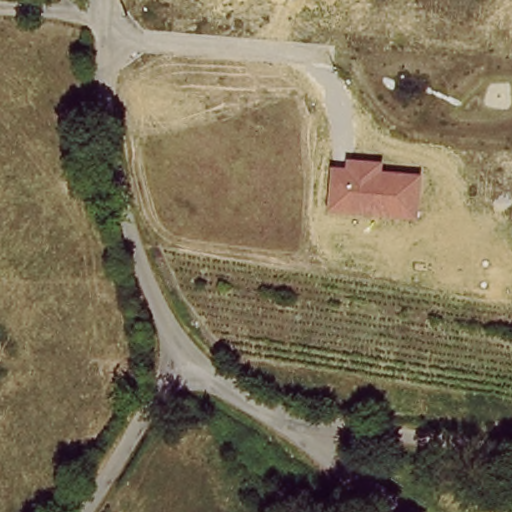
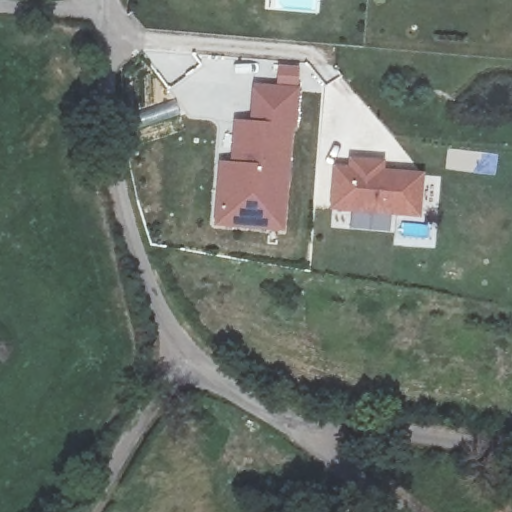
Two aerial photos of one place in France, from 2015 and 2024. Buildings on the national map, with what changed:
new [(231,162),(236,120),(251,121),(253,84),(301,89),(298,129),(294,129),(286,232),(215,225),(221,162),(231,162)]
unchanged [(350,167),(351,156),(388,160),(386,170),(427,174),(422,218),(331,209),(334,165),(350,167)]

